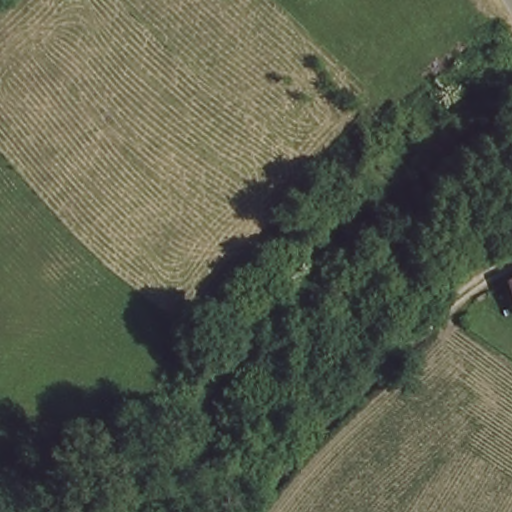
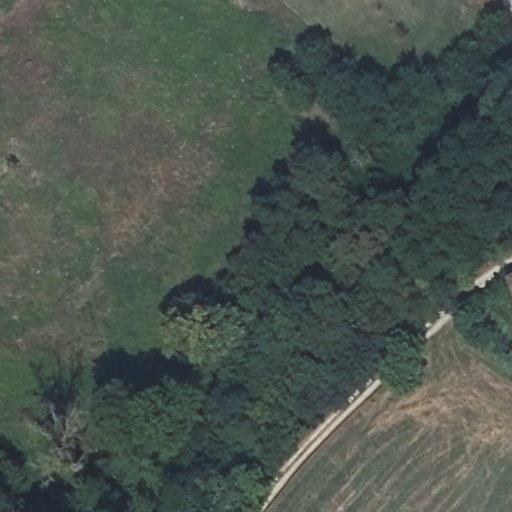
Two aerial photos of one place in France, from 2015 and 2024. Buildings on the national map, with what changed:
unchanged [(512,288),(512,301),(507,291),(512,288)]

